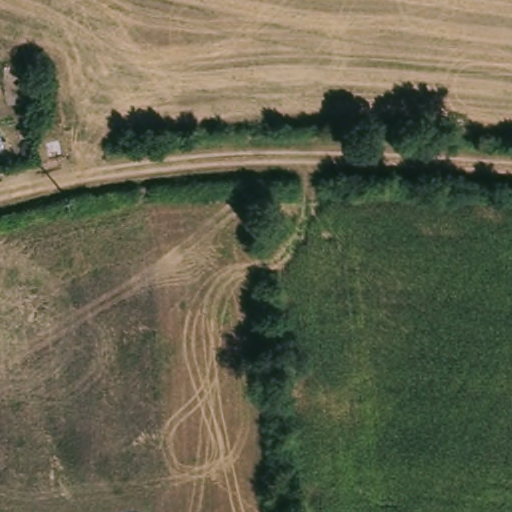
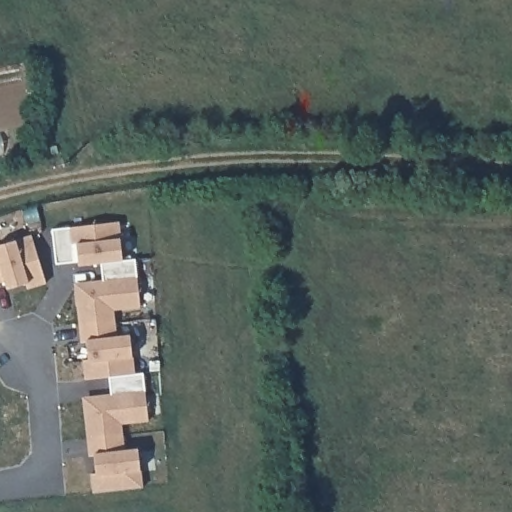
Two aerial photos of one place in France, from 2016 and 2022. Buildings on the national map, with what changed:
new [(53,227),(120,220),(122,257),(135,258),(141,306),(114,308),(117,335),(130,334),(134,371),(142,372),(148,420),(122,422),(125,448),(138,450),(140,467),(143,486),(93,491),(83,396),(110,393),(109,378),(84,378),(75,282),(103,280),(101,262),(79,265),(78,260),(57,263),(53,227)]
new [(47,282),(28,288),(27,282),(7,288),(4,280),(0,281),(0,243),(32,234),(47,282)]

